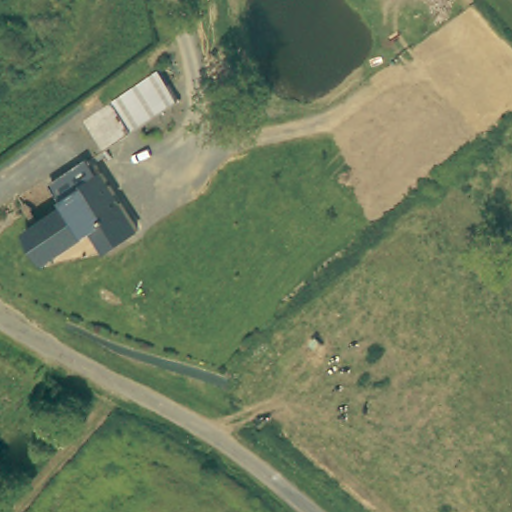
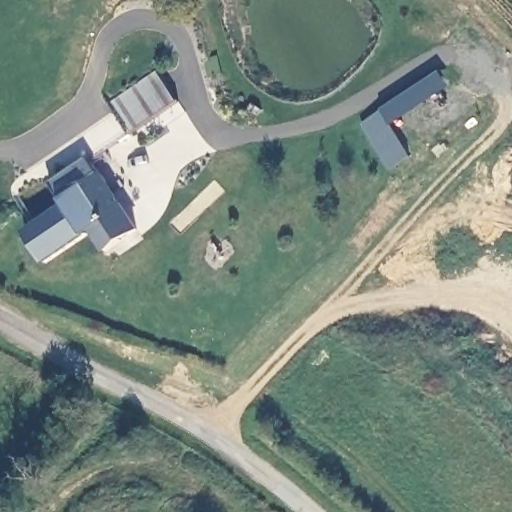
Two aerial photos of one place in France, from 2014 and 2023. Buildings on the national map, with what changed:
new [(394,126),(414,157),(391,171),(361,125),(381,110),(438,71),(450,88),(394,126)]
unchanged [(21,229),(55,206),(63,200),(50,180),(86,155),(119,202),(134,225),(102,247),(88,227),(41,258),(21,229)]

